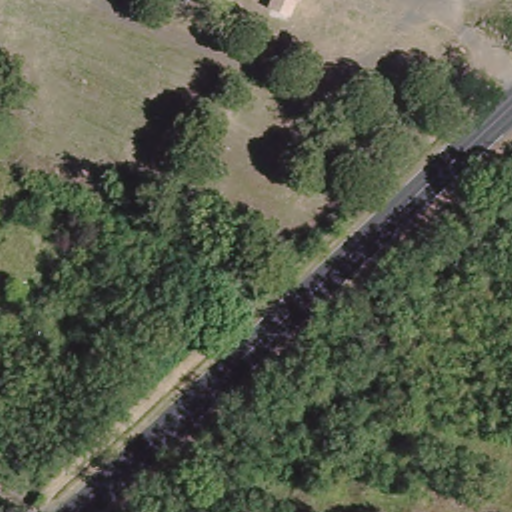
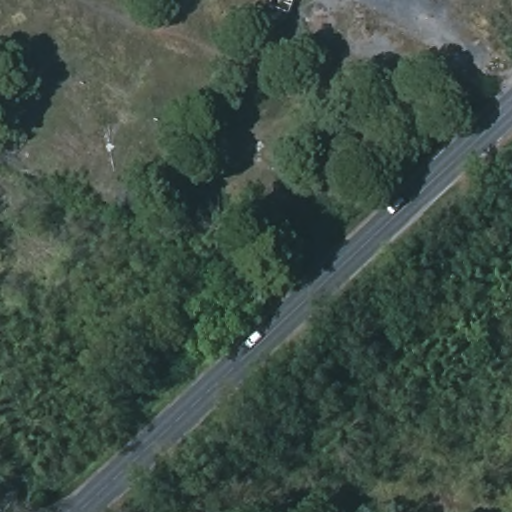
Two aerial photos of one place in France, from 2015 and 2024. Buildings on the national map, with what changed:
unchanged [(290,8),(270,0),(293,0),(290,8)]
unchanged [(212,286),(195,276),(203,261),(221,271),(212,286)]

